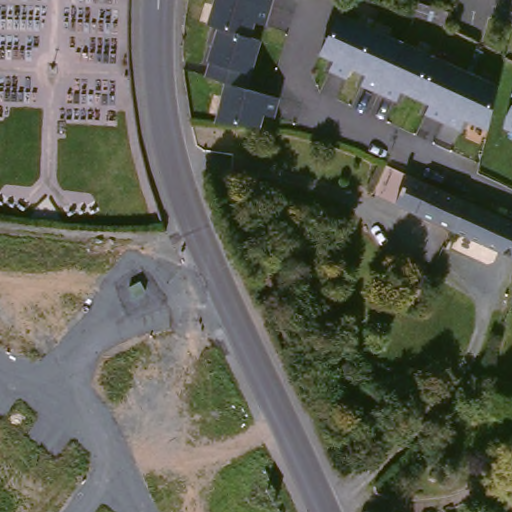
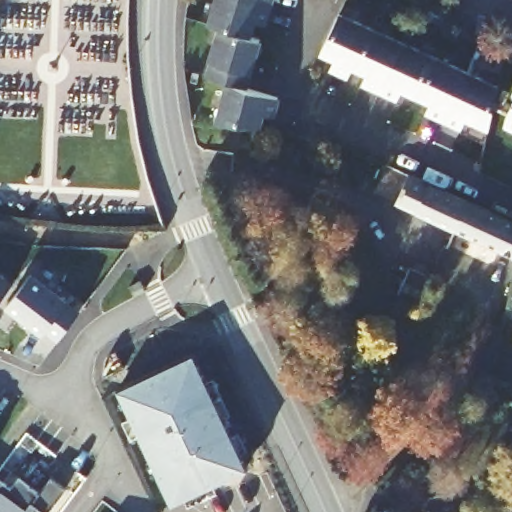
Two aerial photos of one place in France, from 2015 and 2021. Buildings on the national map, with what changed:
unchanged [(208,78),(219,28),(208,20),(213,0),(275,0),(270,22),(255,21),(252,37),(262,40),(249,84),(282,96),(279,114),(264,114),(262,128),(219,124),(228,86),(208,78)]
unchanged [(395,38),(498,91),(493,129),(467,120),(462,128),(426,112),(430,101),(405,91),(400,99),(363,83),(367,73),(357,65),(346,76),(323,62),(345,19),(395,38)]
unchanged [(512,126),(506,124),(512,106),(512,126)]
unchanged [(393,199),(403,173),(512,223),(512,253),(454,227),(393,199)]
unchanged [(424,302),(405,293),(401,291),(412,266),(435,276),(426,296),(424,302)]
unchanged [(34,274),(84,312),(62,339),(49,330),(46,334),(8,304),(34,274)]
new [(1,275),(13,286),(0,302),(0,276),(1,275)]
new [(206,379),(214,378),(232,415),(224,416),(231,433),(240,432),(248,451),(240,452),(248,471),(215,486),(218,494),(189,508),(186,501),(171,507),(137,436),(131,440),(123,421),(129,417),(118,391),(193,355),(206,379)]
new [(11,489),(19,480),(39,494),(51,479),(65,489),(45,512),(0,512),(0,482),(11,489)]

